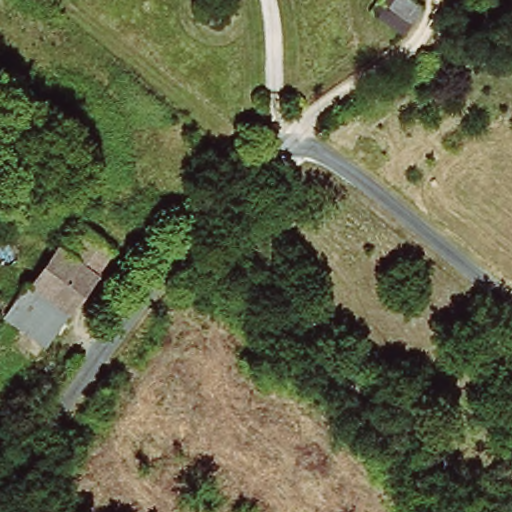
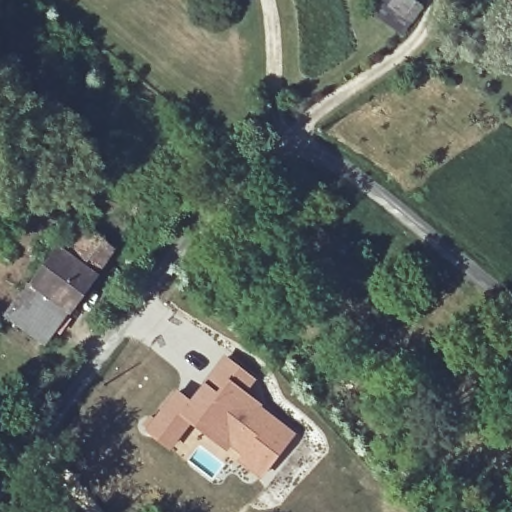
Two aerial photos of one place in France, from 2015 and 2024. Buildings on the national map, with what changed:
new [(402,34),(370,7),(375,0),(381,0),(384,2),(386,0),(415,0),(424,7),(402,34)]
unchanged [(80,221),(113,248),(96,272),(61,246),(80,221)]
unchanged [(96,272),(41,342),(4,312),(58,244),(61,246),(96,272)]
new [(176,389),(189,398),(224,354),(257,380),(247,392),(296,434),(259,479),(191,424),(169,450),(142,428),(176,389)]

